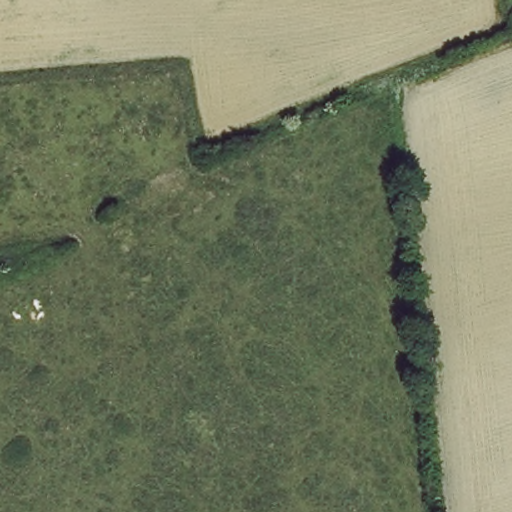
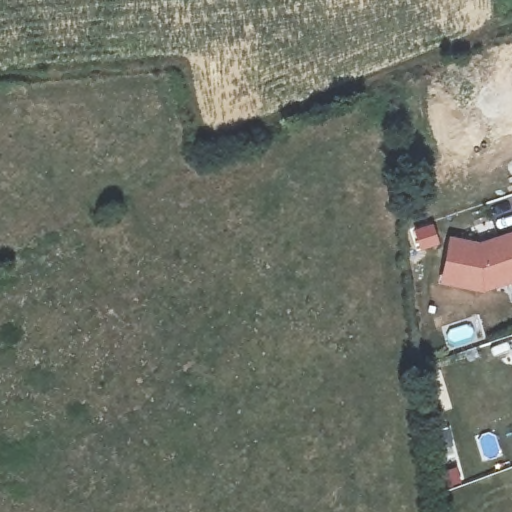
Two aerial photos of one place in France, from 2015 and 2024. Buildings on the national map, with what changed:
new [(481,245),(512,234),(512,280),(486,289),(442,283),(447,241),(481,245)]

